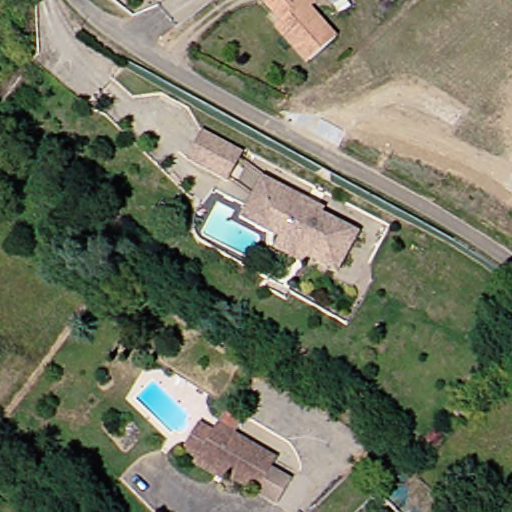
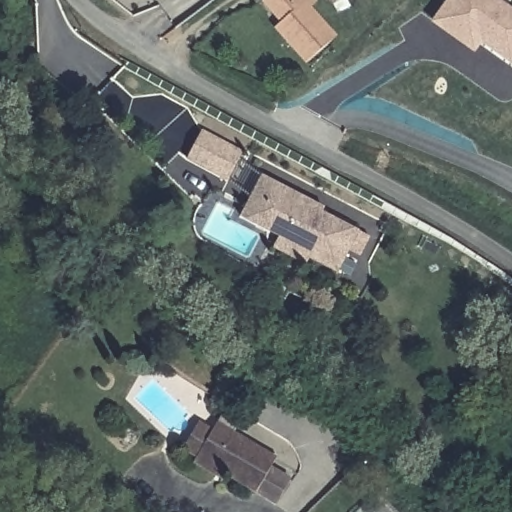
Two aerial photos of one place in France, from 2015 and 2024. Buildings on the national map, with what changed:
unchanged [(270,14),(258,0),(307,0),(309,2),(300,8),(324,37),(294,61),(270,33),(261,21),(270,14)]
new [(450,0),(498,0),(512,10),(512,60),(511,61),(482,40),(474,50),(434,22),(450,0)]
unchanged [(244,166),(227,192),(189,169),(205,142),(244,166)]
unchanged [(259,254),(265,244),(268,240),(231,216),(257,173),(268,180),(314,208),(311,213),(348,236),(320,278),(299,265),(294,276),(259,254)]
unchanged [(262,495),(242,483),(211,463),(206,471),(180,455),(185,447),(172,438),(188,412),(201,421),(214,400),(234,413),(225,426),(262,451),(256,460),(277,472),(262,495)]

